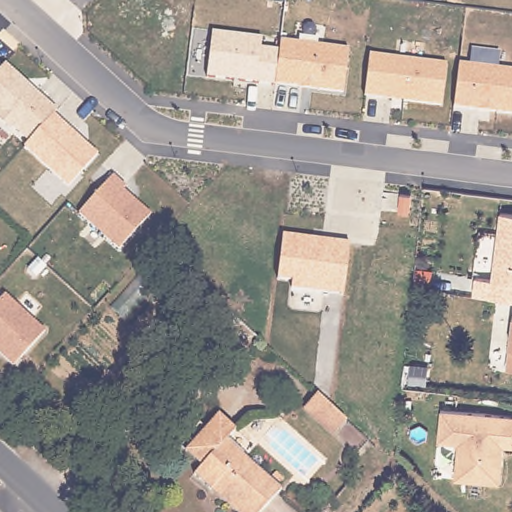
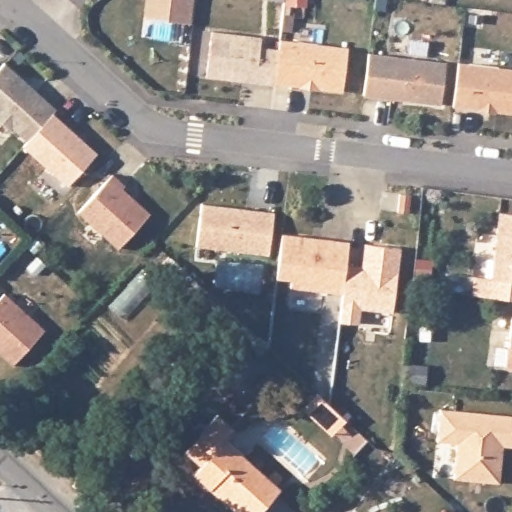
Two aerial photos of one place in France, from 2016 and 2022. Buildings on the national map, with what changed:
unchanged [(146,0),(194,0),(191,23),(145,18),(146,0)]
unchanged [(211,31),(262,37),(261,47),(278,49),(279,40),(349,48),(343,91),(206,77),(211,31)]
unchanged [(447,64),(442,104),(363,96),(369,53),(447,64)]
unchanged [(458,62),(512,68),(512,113),(453,106),(458,62)]
unchanged [(55,114),(99,154),(67,187),(21,146),(25,141),(10,127),(9,130),(0,122),(0,70),(6,63),(58,109),(55,114)]
unchanged [(130,187),(126,192),(155,218),(120,251),(79,212),(114,175),(130,187)]
unchanged [(413,194),(411,212),(400,211),(402,193),(413,194)]
new [(201,203),(275,211),(270,255),(196,247),(201,203)]
unchanged [(491,276),(499,209),(512,210),(512,278),(491,276)]
unchanged [(348,242),(343,293),(291,288),(291,281),(276,280),(283,234),(348,242)]
new [(346,264),(363,265),(365,244),(402,247),(400,281),(397,281),(393,312),(362,309),(361,324),(341,322),(343,293),(346,264)]
unchanged [(475,277),(490,279),(491,276),(512,278),(512,300),(472,294),(475,277)]
unchanged [(13,365),(0,352),(0,299),(7,291),(49,330),(13,365)]
unchanged [(505,370),(512,316),(512,370),(505,370)]
unchanged [(337,432),(309,405),(322,392),(351,418),(337,432)]
unchanged [(496,488),(451,483),(456,447),(435,445),(440,411),(512,421),(512,451),(501,450),(500,464),(496,488)]
unchanged [(192,471),(200,464),(183,449),(217,412),(235,428),(226,437),(269,477),(276,470),(283,476),(276,483),(280,487),(257,512),(238,512),(211,487),(192,471)]

